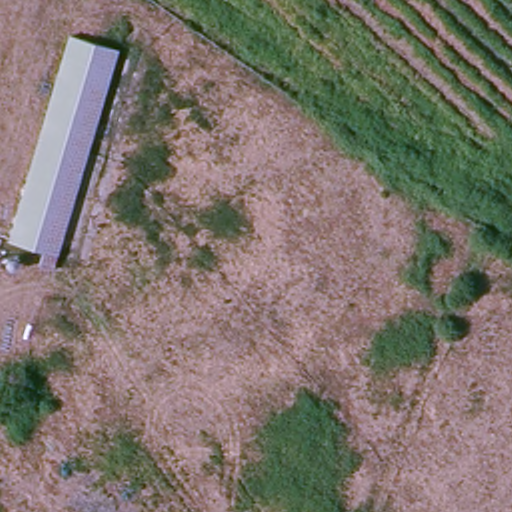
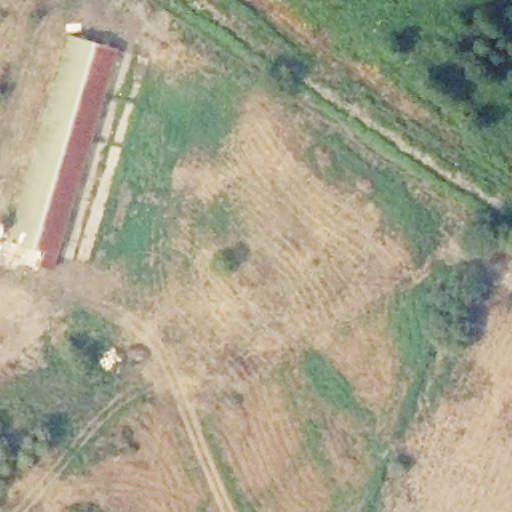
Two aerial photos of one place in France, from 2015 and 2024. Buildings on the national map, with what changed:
unchanged [(122,51),(62,271),(43,268),(46,238),(22,236),(75,37),(122,51)]

